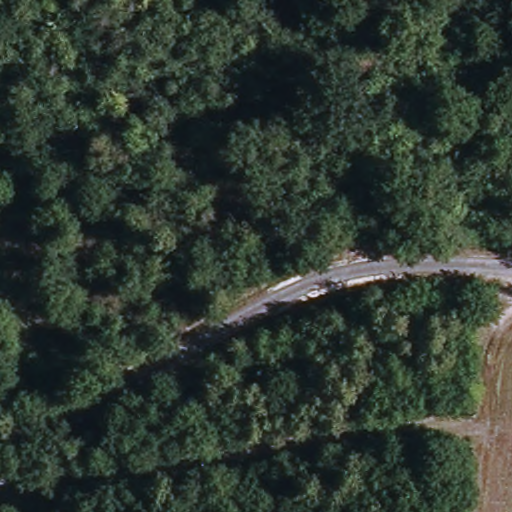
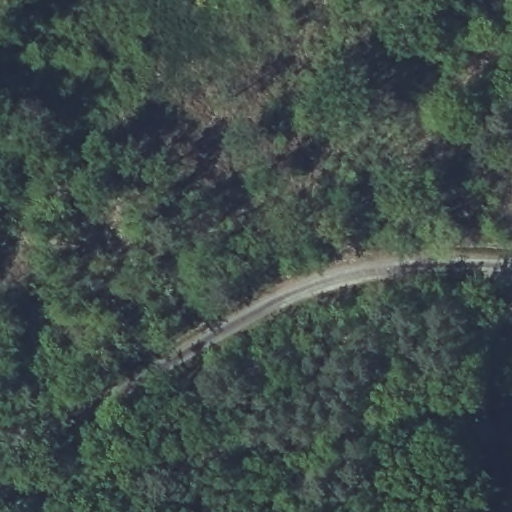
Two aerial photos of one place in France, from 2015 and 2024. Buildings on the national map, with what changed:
unchanged [(15,476),(18,488),(0,494),(0,480),(15,476)]

